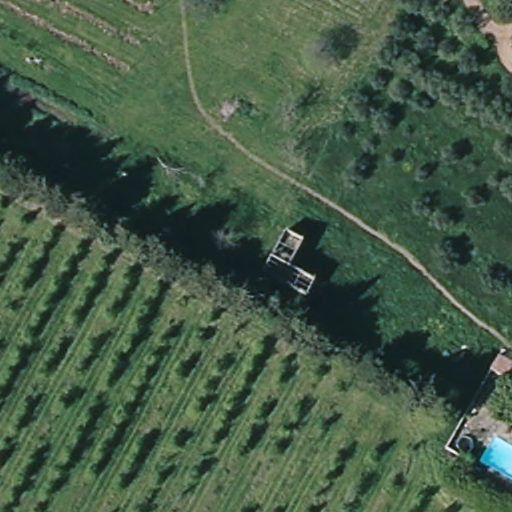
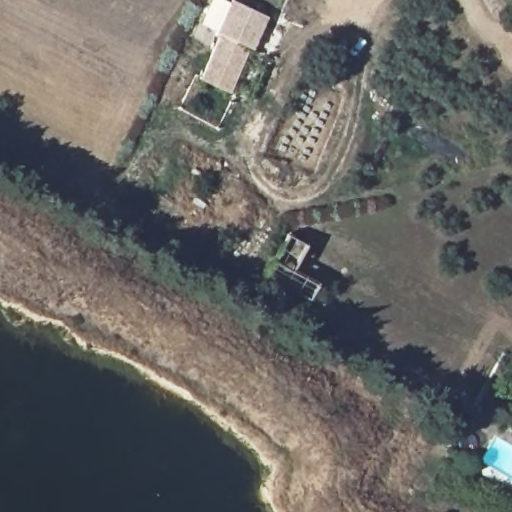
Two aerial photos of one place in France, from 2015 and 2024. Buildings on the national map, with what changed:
new [(247,48),(213,31),(228,0),(230,0),(263,16),(247,48)]
new [(221,91),(195,79),(215,37),(210,36),(213,31),(244,46),(221,91)]
unchanged [(308,240),(300,263),(322,278),(310,304),(266,276),(286,228),(308,240)]

